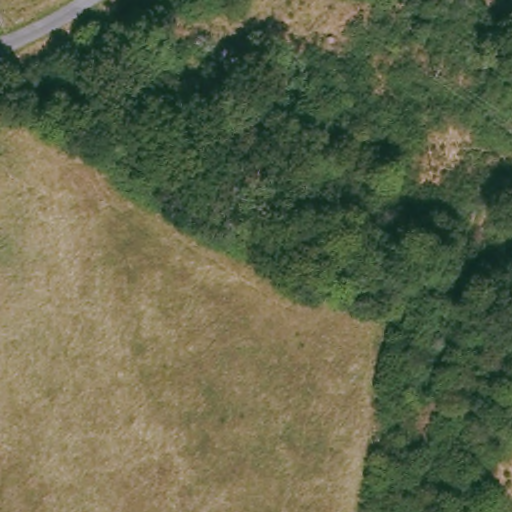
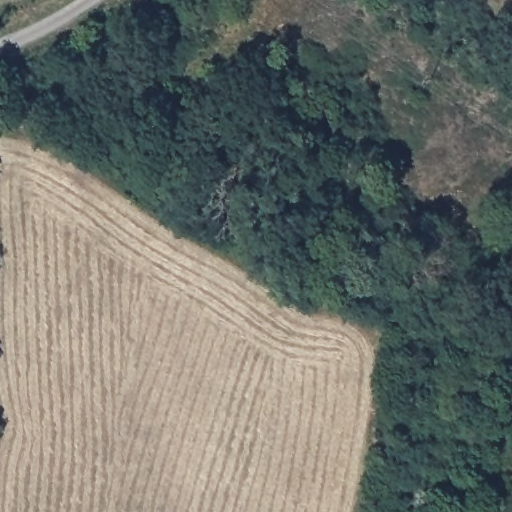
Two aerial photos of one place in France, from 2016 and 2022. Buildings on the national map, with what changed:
[]

